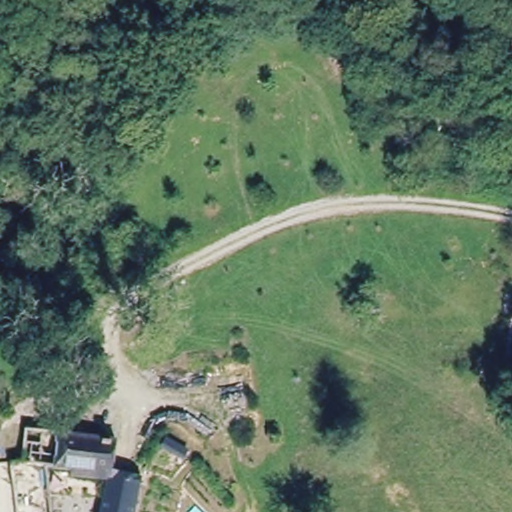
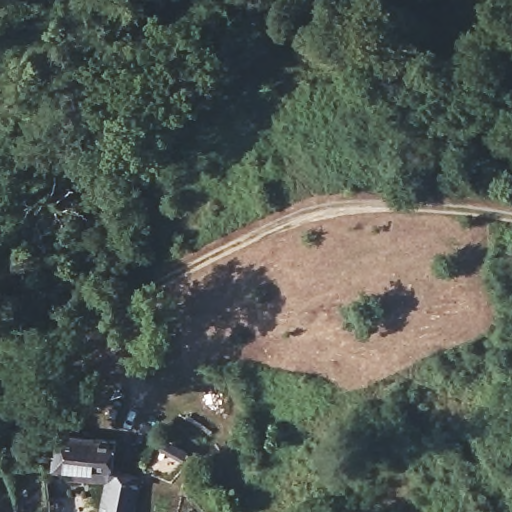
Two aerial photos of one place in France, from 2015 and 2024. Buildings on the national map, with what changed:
unchanged [(146,482),(140,512),(98,512),(106,477),(40,467),(48,512),(18,512),(12,469),(25,467),(27,433),(116,444),(115,477),(146,482)]

